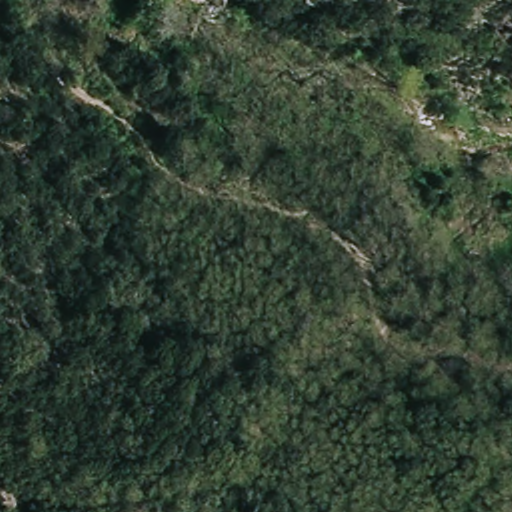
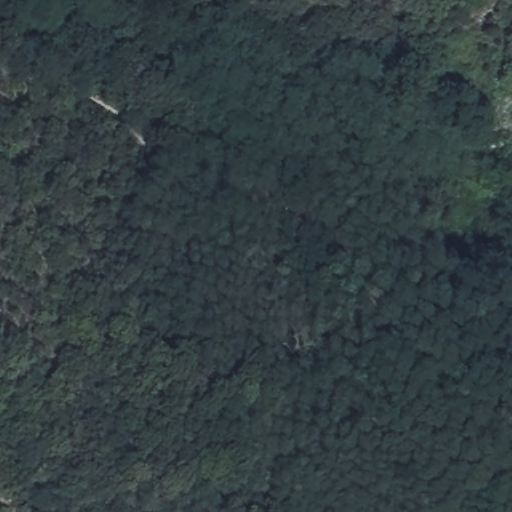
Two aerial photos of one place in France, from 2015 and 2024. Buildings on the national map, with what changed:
unchanged [(493,185),(499,172),(503,165),(512,169),(512,194),(493,185)]

